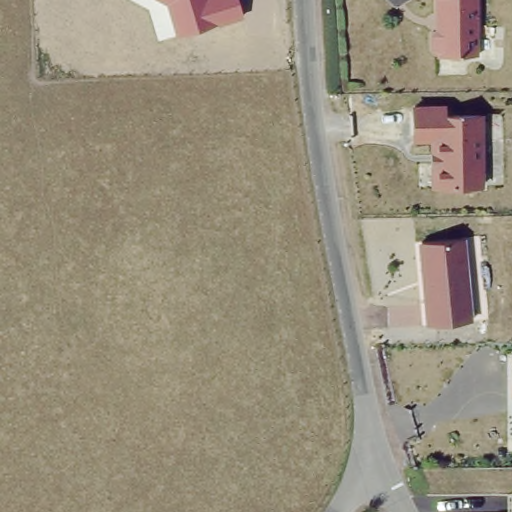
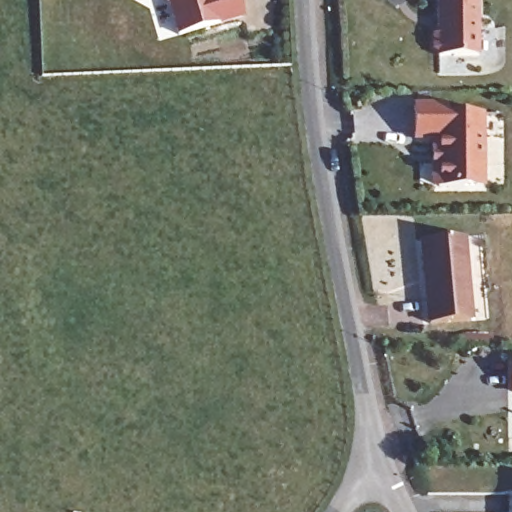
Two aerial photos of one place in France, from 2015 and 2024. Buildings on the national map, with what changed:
unchanged [(245,18),(175,38),(167,3),(161,0),(240,0),(245,18)]
unchanged [(443,56),(442,52),(437,48),(437,33),(442,27),(442,0),(483,0),(483,56),(443,56)]
unchanged [(432,133),(415,133),(415,101),(448,101),(448,110),(483,110),(483,181),(438,181),(432,181),(432,133)]
unchanged [(429,326),(423,244),(463,242),(470,324),(429,326)]

